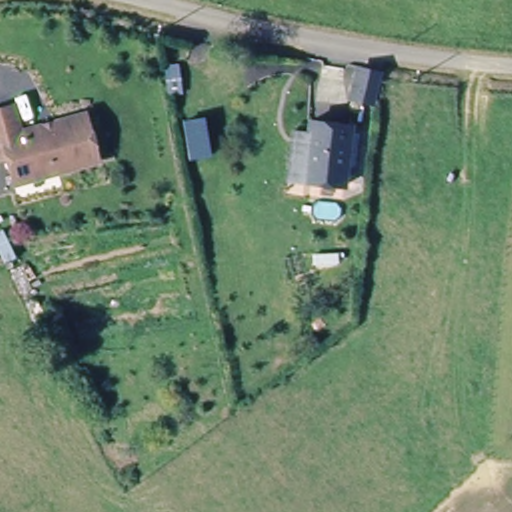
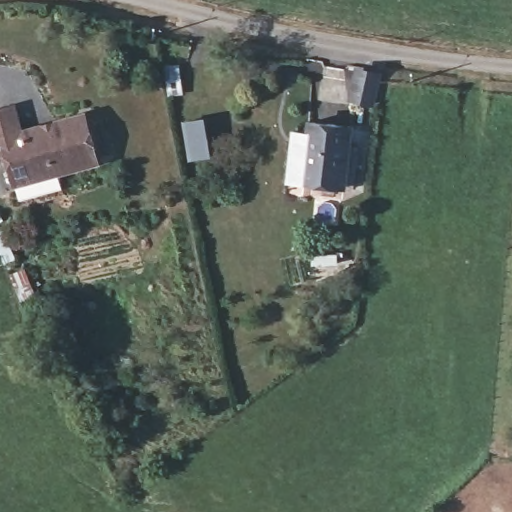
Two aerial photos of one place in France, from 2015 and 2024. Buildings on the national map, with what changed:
unchanged [(197,96),(182,98),(180,71),(196,70),(197,96)]
unchanged [(13,160),(2,160),(0,153),(0,111),(17,106),(22,133),(89,118),(100,162),(62,171),(63,186),(22,196),(19,181),(13,160)]
unchanged [(312,132),(317,120),(355,124),(350,183),(308,179),(290,176),(295,130),(312,132)]

